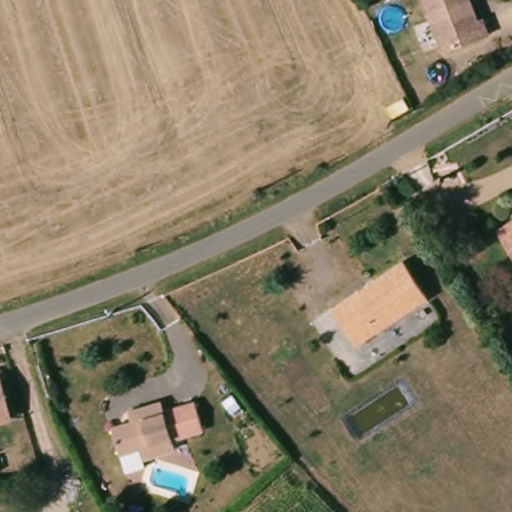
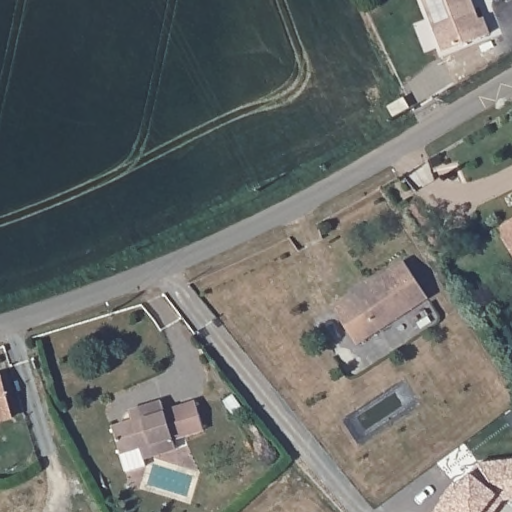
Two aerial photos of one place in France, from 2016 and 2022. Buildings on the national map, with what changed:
unchanged [(480,19),(485,17),(491,33),(444,52),(424,0),(472,0),(480,19)]
unchanged [(497,233),(512,223),(512,256),(497,233)]
unchanged [(434,297),(362,343),(339,306),(410,260),(434,297)]
unchanged [(11,414),(0,417),(0,372),(1,371),(11,414)]
unchanged [(128,414),(159,405),(163,415),(193,406),(200,434),(170,443),(173,454),(142,463),(139,452),(118,458),(110,431),(131,426),(128,414)]
new [(512,458),(512,500),(499,501),(492,512),(432,512),(470,464),(512,458)]

